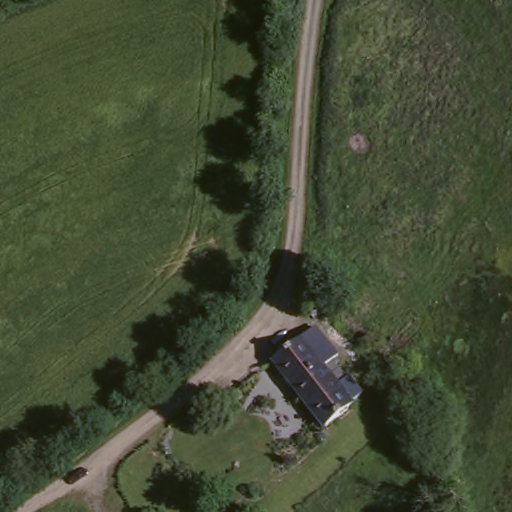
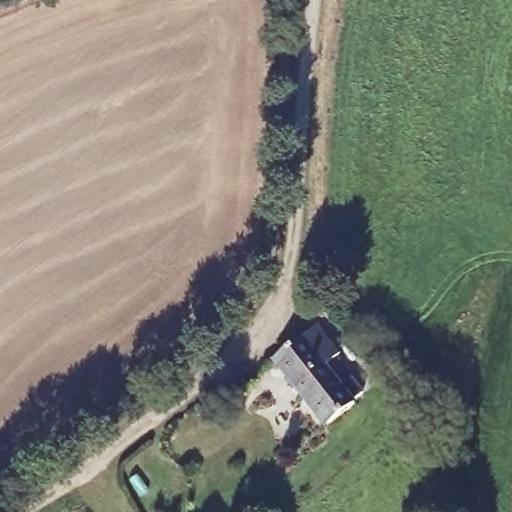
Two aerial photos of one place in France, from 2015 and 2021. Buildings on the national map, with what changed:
unchanged [(344,353),(332,363),(363,406),(332,429),(279,357),(323,324),(344,353)]

